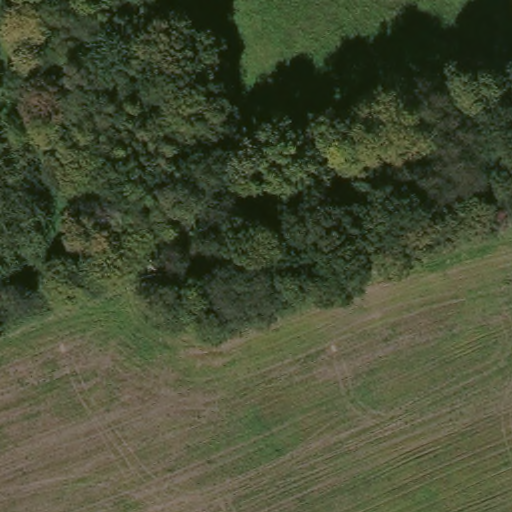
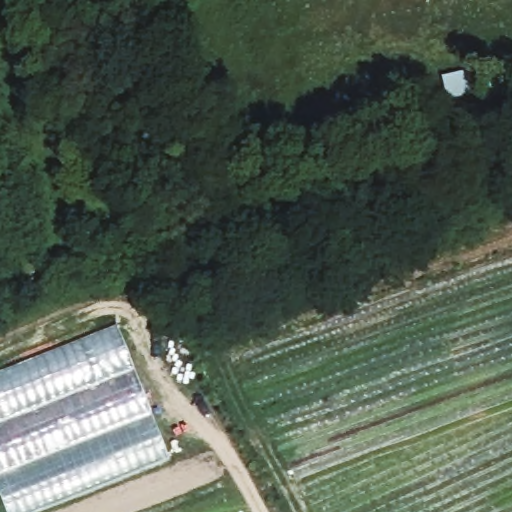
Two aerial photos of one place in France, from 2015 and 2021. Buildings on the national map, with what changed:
new [(115,324),(169,460),(36,512),(5,512),(0,500),(0,370),(115,324)]

